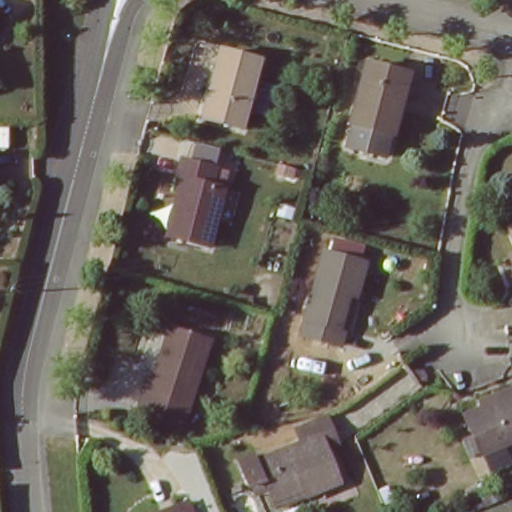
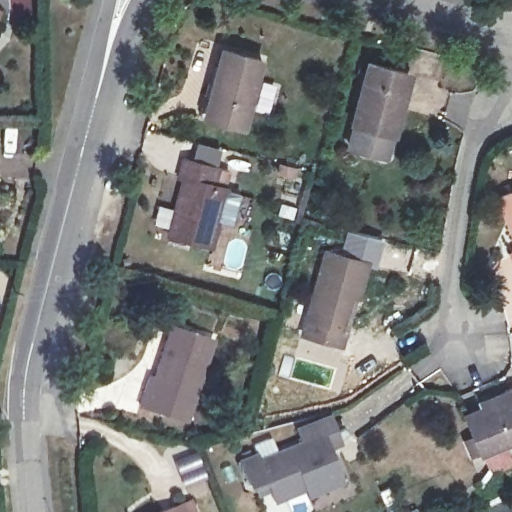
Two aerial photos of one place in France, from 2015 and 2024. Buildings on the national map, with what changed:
unchanged [(263,60),(247,131),(198,119),(207,81),(214,84),(223,48),(263,60)]
unchanged [(409,58),(401,86),(406,88),(397,123),(396,123),(390,145),(351,135),(356,113),(372,49),(409,58)]
unchanged [(219,170),(215,186),(227,189),(211,247),(167,235),(187,162),(219,170)]
new [(496,196),(512,190),(512,222),(506,224),(496,196)]
unchanged [(512,222),(512,244),(506,224),(512,222)]
unchanged [(512,250),(512,270),(506,253),(512,250)]
unchanged [(366,263),(358,294),(349,291),(340,325),(346,326),(341,346),(302,335),(324,253),(366,263)]
unchanged [(213,339),(188,426),(140,412),(150,375),(158,378),(172,328),(213,339)]
unchanged [(465,417),(512,398),(512,442),(481,455),(465,417)]
unchanged [(345,456),(336,459),(343,485),(275,511),(267,494),(251,501),(233,459),(256,450),(258,456),(298,441),(293,426),(327,413),(345,456)]
unchanged [(181,506),(184,512),(165,512),(181,506)]

